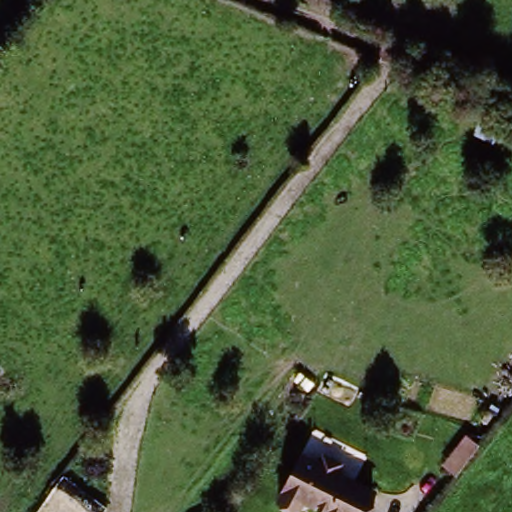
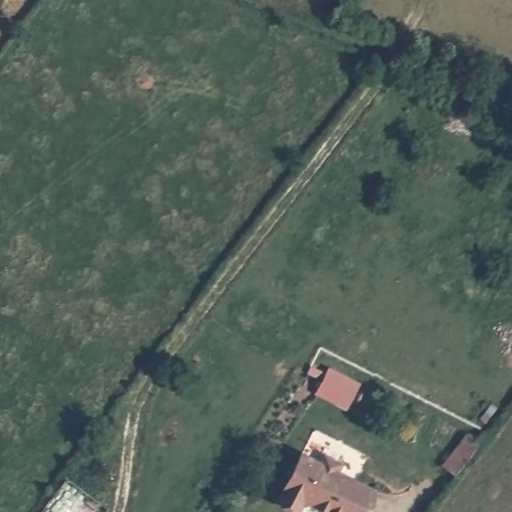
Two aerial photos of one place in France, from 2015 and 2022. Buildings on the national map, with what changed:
new [(362,382),(346,411),(315,394),(329,367),(362,382)]
unchanged [(458,478),(439,465),(465,431),(485,445),(458,478)]
unchanged [(334,473),(372,492),(361,512),(320,512),(303,503),(298,511),(277,500),(300,455),(316,463),(320,455),(339,464),(334,473)]

